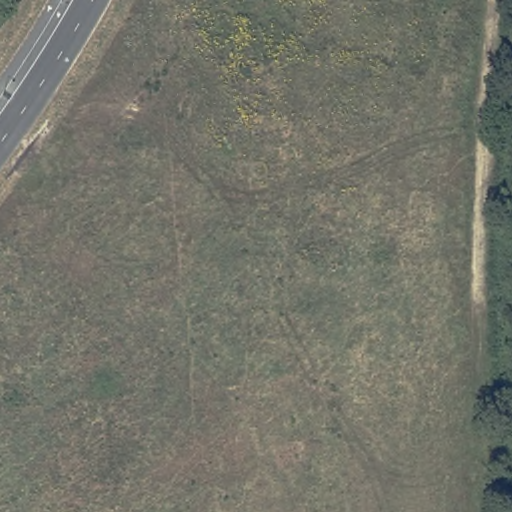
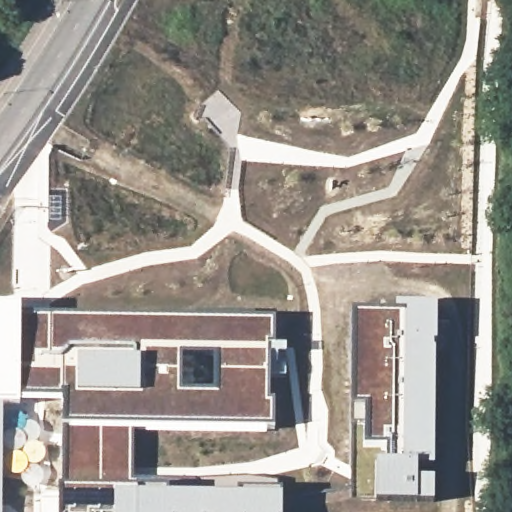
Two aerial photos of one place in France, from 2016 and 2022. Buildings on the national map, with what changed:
new [(19,310),(19,313),(195,314),(194,310),(253,310),(253,316),(272,316),(273,343),(267,343),(268,397),(272,397),(272,425),(131,422),(131,476),(207,475),(275,475),(276,487),(281,489),(281,498),(348,485),(349,310),(395,310),(394,305),(432,305),(431,462),(415,462),(415,472),(422,472),(422,476),(445,475),(445,512),(0,512),(0,309),(19,310)]

